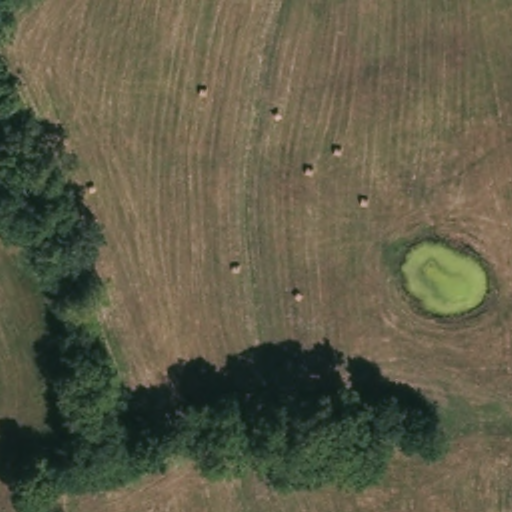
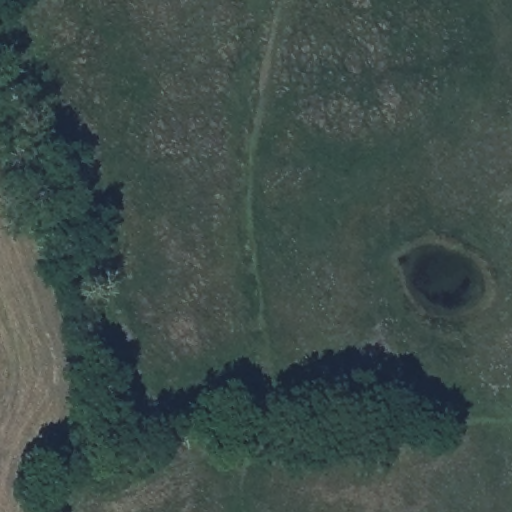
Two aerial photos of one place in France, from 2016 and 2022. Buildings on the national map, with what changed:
[]

